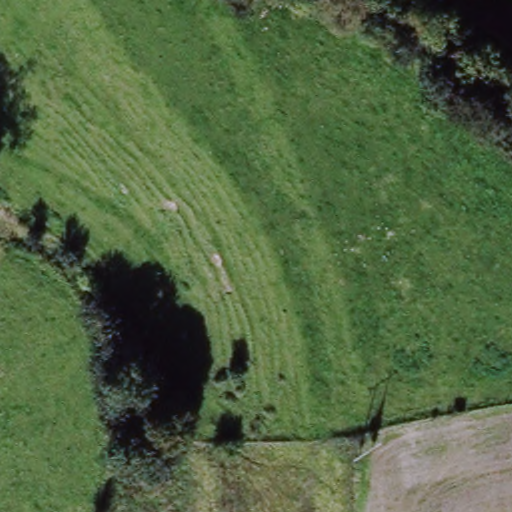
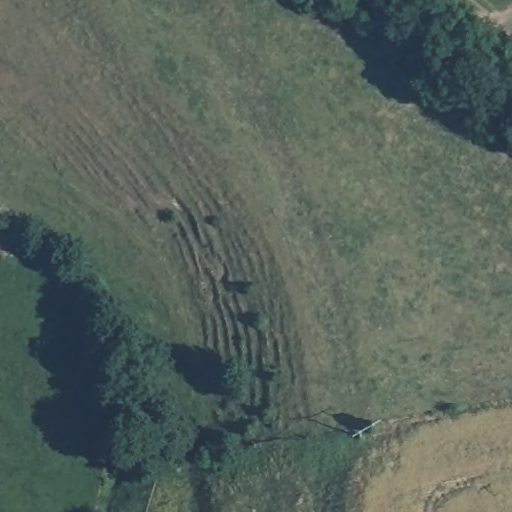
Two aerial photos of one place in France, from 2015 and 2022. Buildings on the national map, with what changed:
[]

